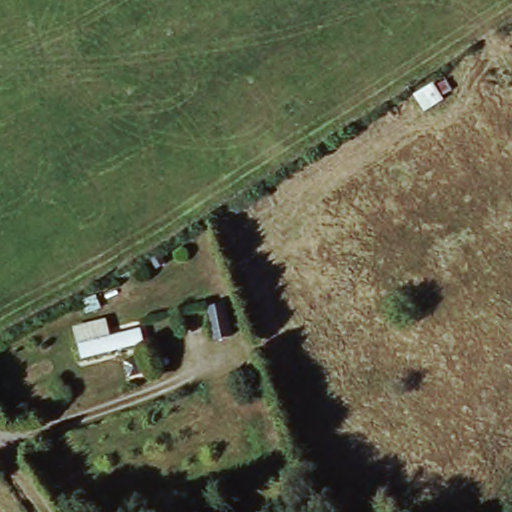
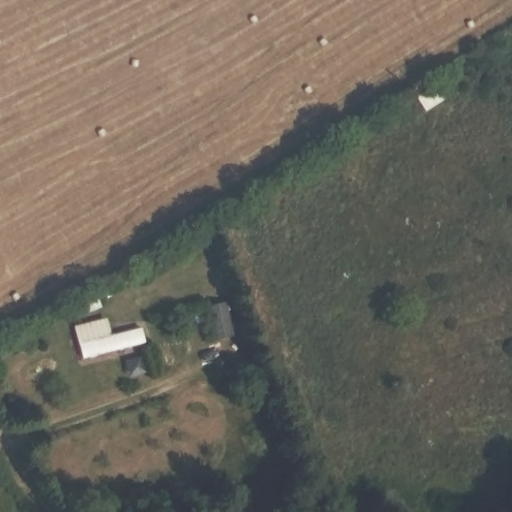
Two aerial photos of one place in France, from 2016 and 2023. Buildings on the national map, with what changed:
unchanged [(228,302),(234,340),(215,343),(206,307),(228,302)]
unchanged [(73,327),(108,317),(112,336),(143,328),(146,346),(81,362),(73,327)]

